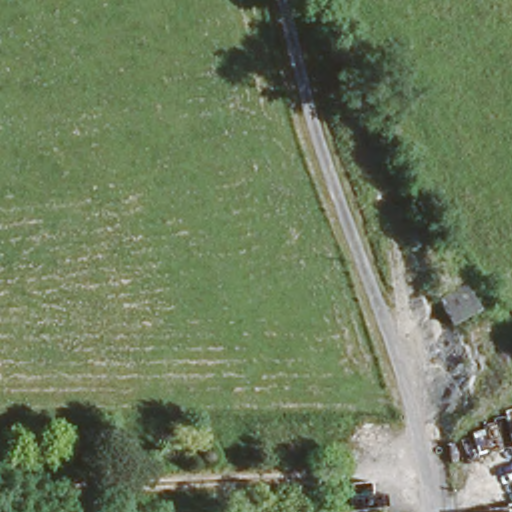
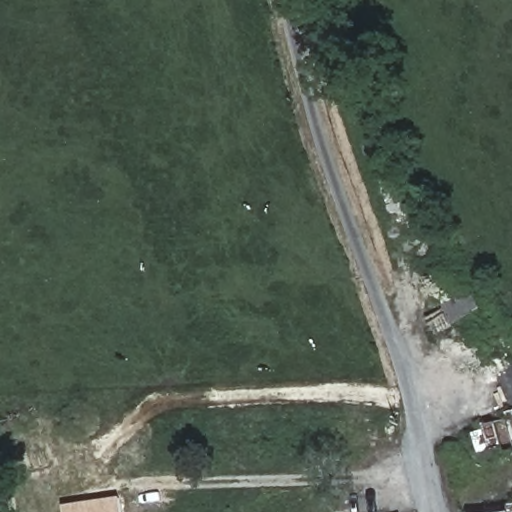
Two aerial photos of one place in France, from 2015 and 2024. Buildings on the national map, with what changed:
unchanged [(465,282),(480,306),(448,321),(435,297),(465,282)]
new [(61,506),(118,497),(120,512),(62,512),(61,506)]

